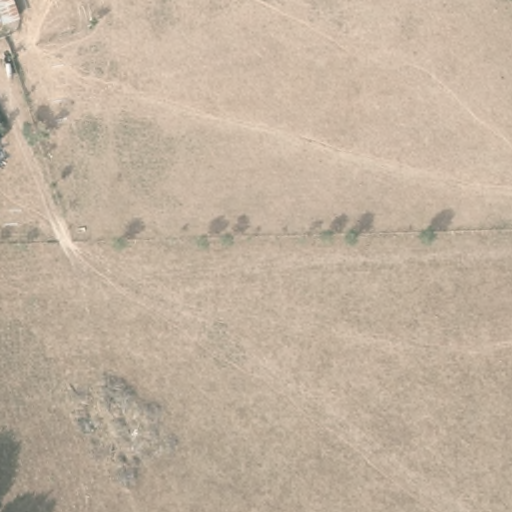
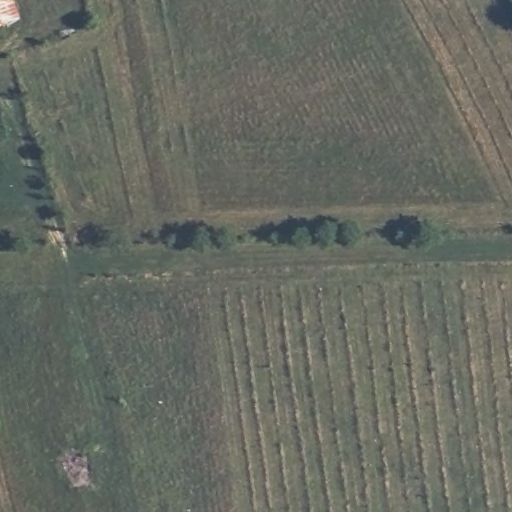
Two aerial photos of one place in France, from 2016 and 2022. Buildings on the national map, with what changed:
unchanged [(0,0),(12,0),(15,15),(2,19),(0,10),(0,0)]
unchanged [(0,20),(0,10),(2,19),(0,20)]

